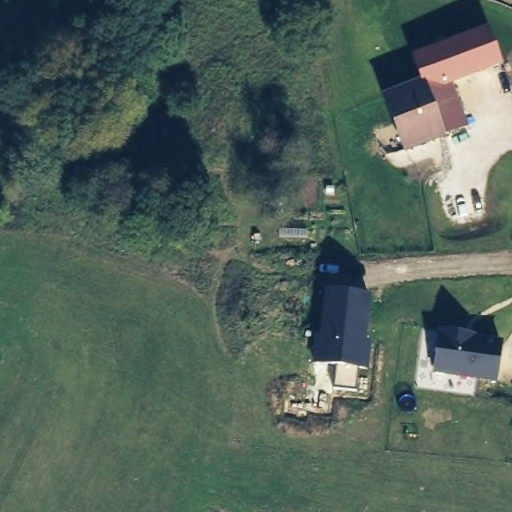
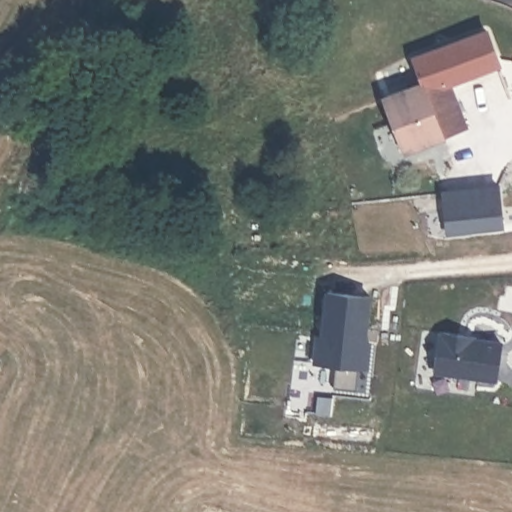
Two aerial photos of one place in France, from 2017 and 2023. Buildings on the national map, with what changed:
unchanged [(494,64),(446,83),(460,126),(402,150),(383,98),(421,83),(413,59),(483,30),(494,64)]
new [(447,233),(443,191),(500,184),(505,228),(447,233)]
unchanged [(315,335),(321,336),(326,289),(371,294),(366,341),(371,342),(368,369),(358,368),(355,390),(334,388),(337,365),(311,364),(315,335)]
unchanged [(502,340),(497,381),(432,373),(437,333),(502,340)]

